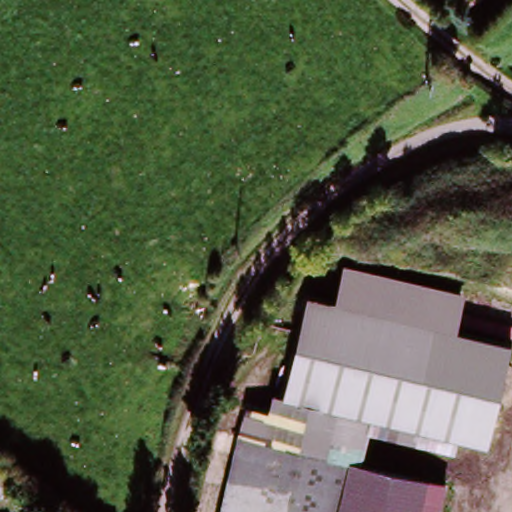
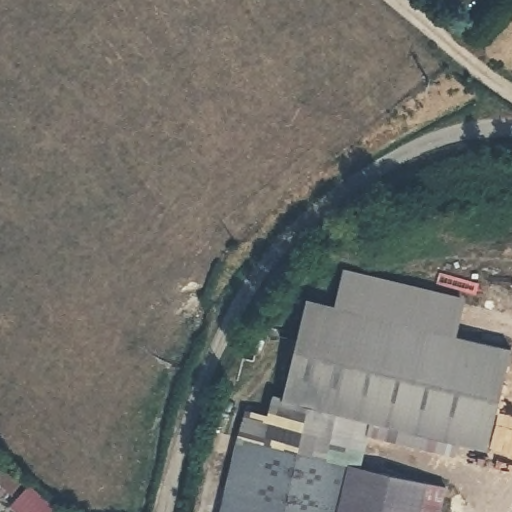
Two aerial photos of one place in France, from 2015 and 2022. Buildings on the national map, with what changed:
unchanged [(340,307),(348,266),(465,296),(460,338),(508,346),(491,445),(287,400),(309,302),(340,307)]
unchanged [(236,437),(350,464),(339,512),(219,512),(236,437)]
unchanged [(6,460),(22,478),(4,495),(0,493),(0,466),(6,460)]
unchanged [(350,464),(445,486),(439,512),(339,512),(350,464)]
unchanged [(53,503),(63,512),(47,512),(53,503)]

